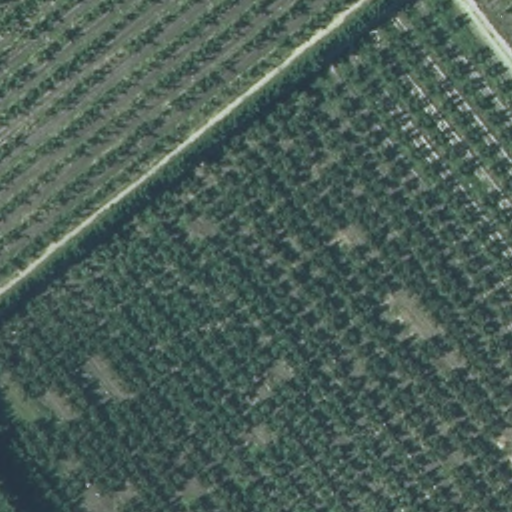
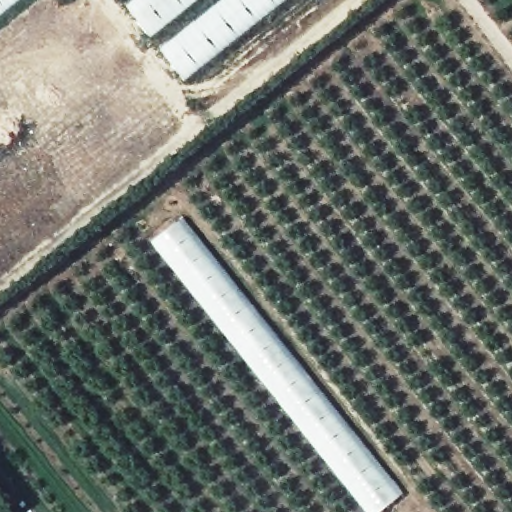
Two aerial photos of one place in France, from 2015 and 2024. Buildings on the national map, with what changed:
new [(404,494),(382,512),(366,512),(152,242),(183,218),(404,494)]

